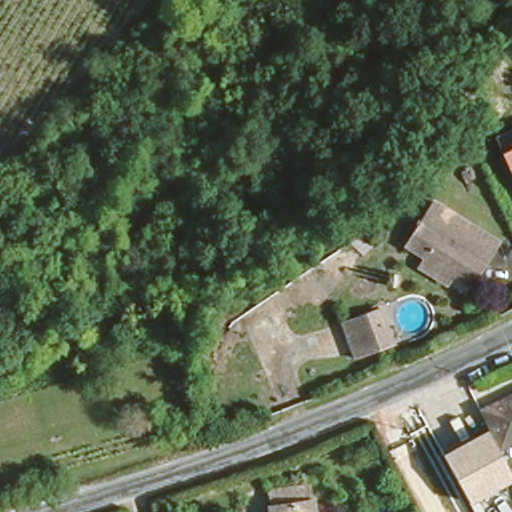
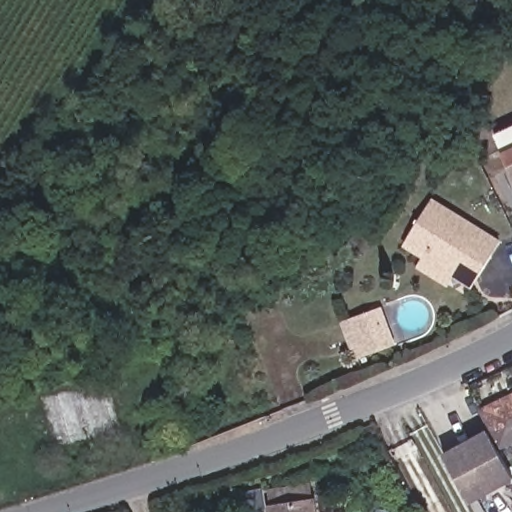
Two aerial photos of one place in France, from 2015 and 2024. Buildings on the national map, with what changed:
unchanged [(496,128),(512,122),(512,165),(496,128)]
unchanged [(423,246),(404,229),(438,192),(495,244),(454,290),(441,278),(415,255),(423,246)]
unchanged [(384,343),(360,352),(346,314),(378,299),(384,313),(394,337),(384,343)]
unchanged [(512,392),(512,436),(503,441),(486,404),(512,392)]
unchanged [(468,503),(440,455),(487,432),(512,475),(512,482),(468,503)]
unchanged [(266,499),(264,485),(303,477),(305,492),(309,512),(268,512),(266,499)]

